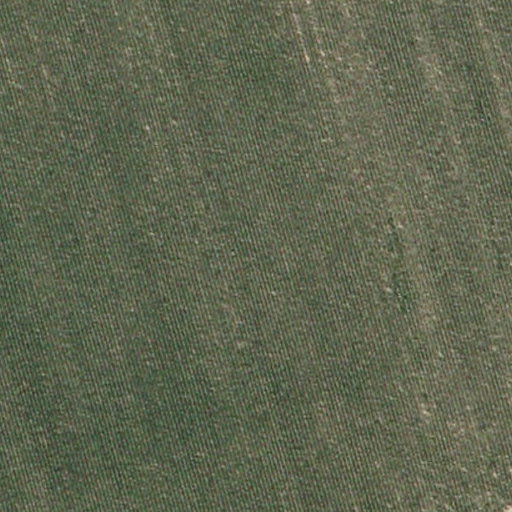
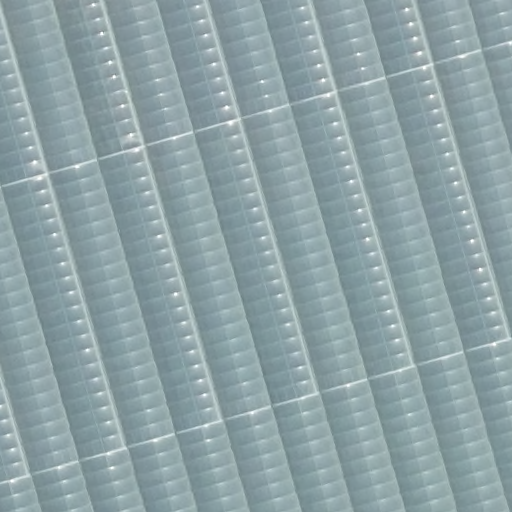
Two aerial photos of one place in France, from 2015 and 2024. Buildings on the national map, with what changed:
new [(512,512),(0,512),(0,0),(512,0),(512,512)]

